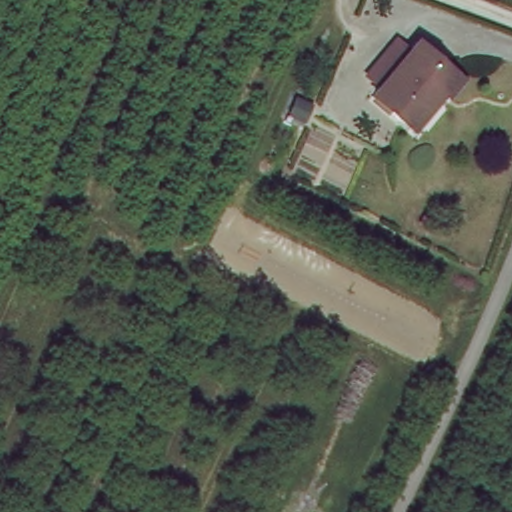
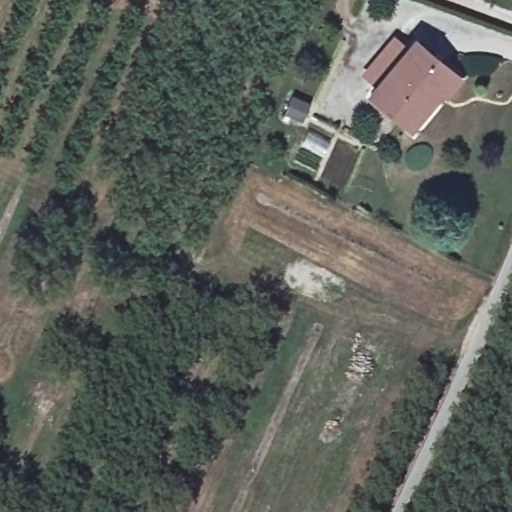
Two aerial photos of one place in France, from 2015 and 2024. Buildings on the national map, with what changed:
unchanged [(437,89),(406,125),(370,94),(415,41),(461,78),(445,95),(437,89)]

